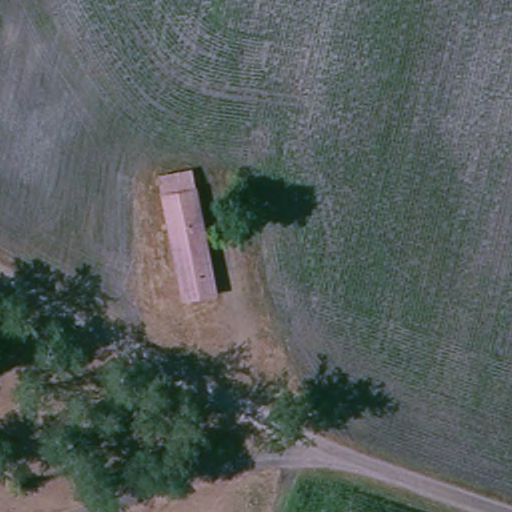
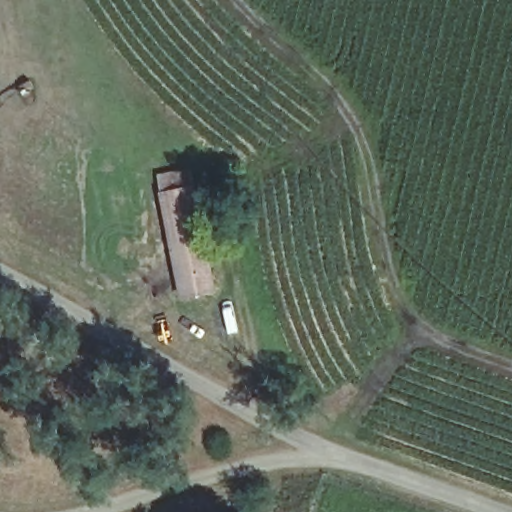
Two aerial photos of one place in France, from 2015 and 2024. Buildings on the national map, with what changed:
unchanged [(189,186),(210,280),(187,284),(166,189),(189,186)]

